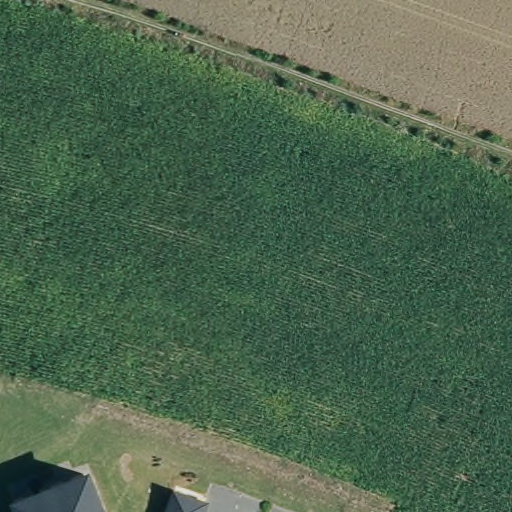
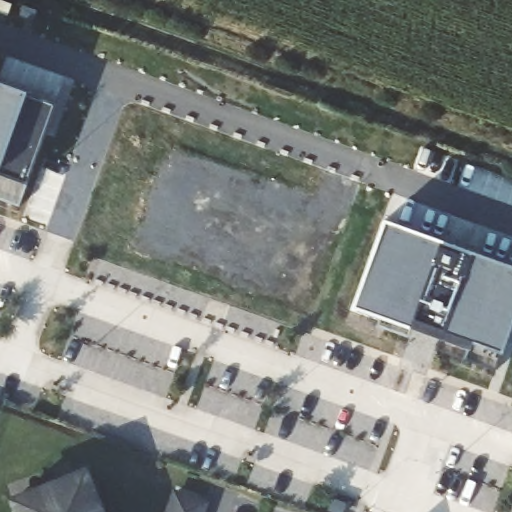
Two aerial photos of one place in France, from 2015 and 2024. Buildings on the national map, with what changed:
new [(11,5),(8,15),(0,13),(0,2),(11,5)]
new [(36,11),(32,24),(18,19),(21,7),(36,11)]
new [(54,105),(19,203),(0,197),(0,85),(54,105)]
new [(512,321),(494,370),(434,352),(442,338),(411,324),(409,331),(352,311),(381,221),(512,267),(512,321)]
unchanged [(98,512),(15,512),(11,502),(83,474),(98,512)]
unchanged [(202,512),(167,512),(174,493),(204,504),(202,512)]

